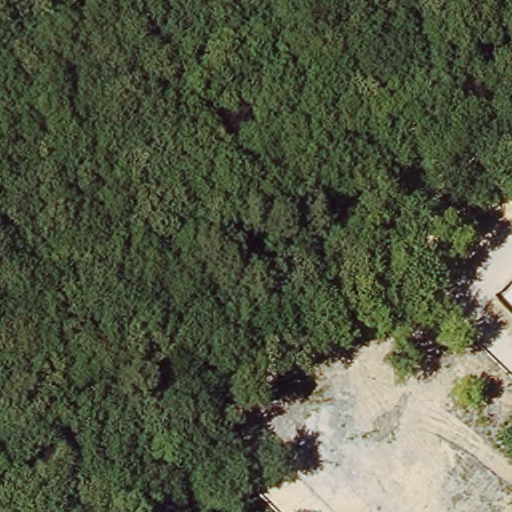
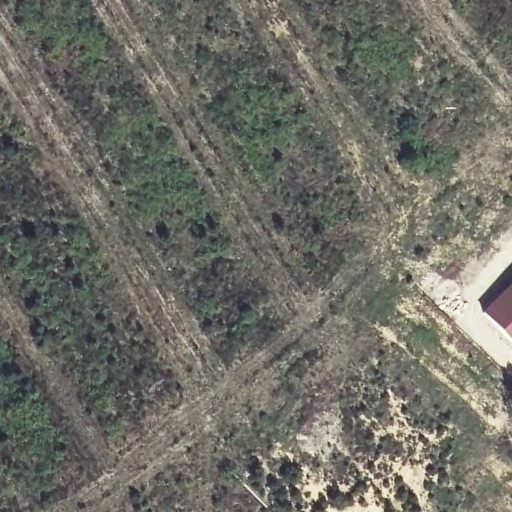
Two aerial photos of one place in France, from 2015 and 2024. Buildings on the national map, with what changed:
new [(512,281),(512,345),(481,313),(512,281)]

